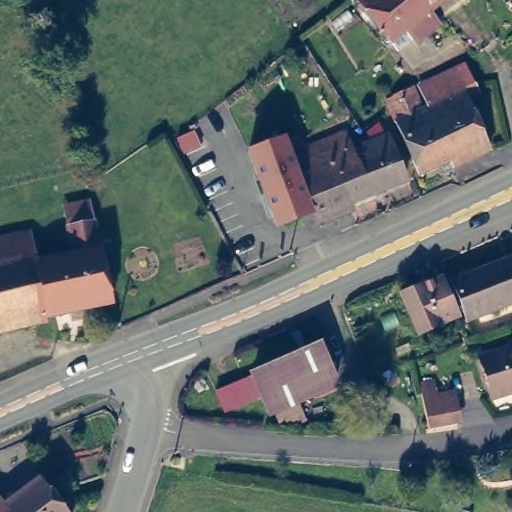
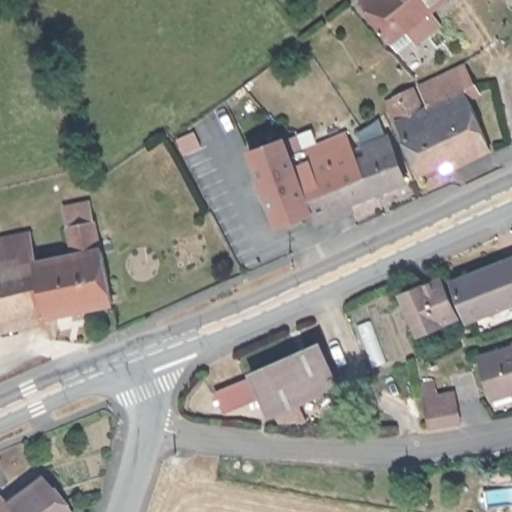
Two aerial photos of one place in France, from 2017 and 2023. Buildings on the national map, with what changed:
unchanged [(448,0),(431,14),(433,16),(394,45),(364,6),(370,0),(448,0)]
unchanged [(466,93),(432,108),(422,89),(467,69),(476,88),(471,91),(466,93)]
unchanged [(490,144),(421,174),(393,110),(396,106),(395,100),(415,90),(424,111),(432,108),(466,93),(490,144)]
unchanged [(354,146),(355,151),(301,174),(291,150),(324,139),(348,130),(354,146)]
unchanged [(388,131),(408,176),(318,213),(314,206),(295,213),(283,181),(301,174),(355,151),(354,146),(388,131)]
unchanged [(35,274),(75,265),(67,236),(80,234),(78,226),(91,224),(100,259),(101,258),(114,313),(48,328),(47,325),(0,336),(0,255),(29,249),(35,274)]
unchanged [(450,278),(512,252),(512,295),(466,314),(450,278)]
unchanged [(440,274),(458,313),(420,329),(402,293),(404,291),(440,274)]
unchanged [(489,392),(480,351),(512,345),(512,387),(489,392)]
unchanged [(316,347),(333,384),(265,412),(257,394),(220,409),(213,389),(316,347)]
unchanged [(409,402),(466,390),(471,413),(414,424),(409,402)]
unchanged [(34,471),(67,512),(66,512),(0,512),(0,499),(34,471)]

